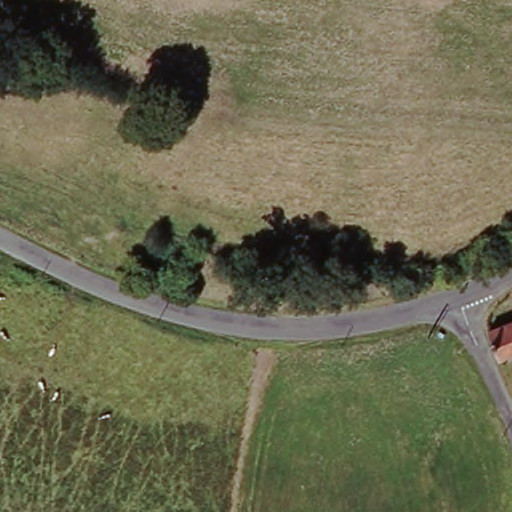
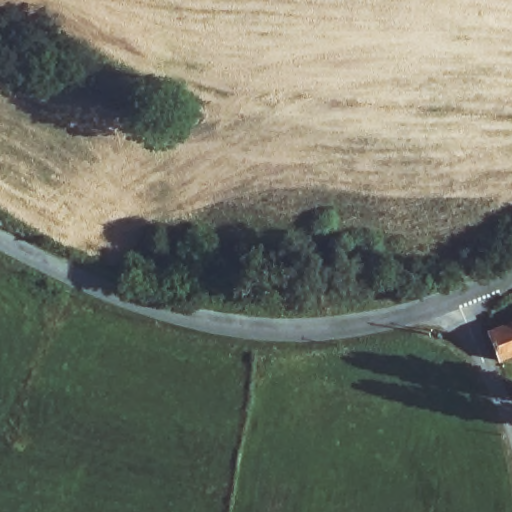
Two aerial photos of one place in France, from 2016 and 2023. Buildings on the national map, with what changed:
unchanged [(512,327),(512,361),(501,365),(489,336),(512,327)]

